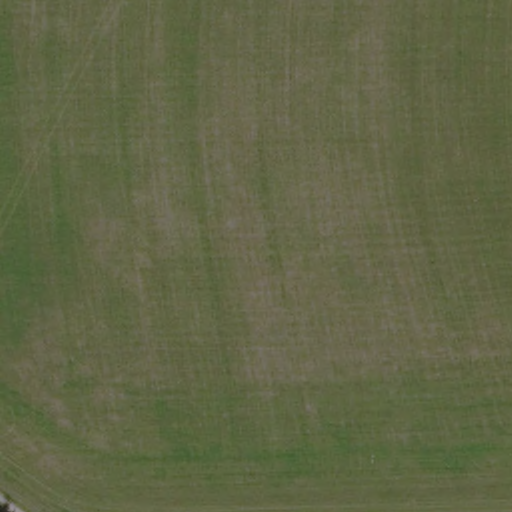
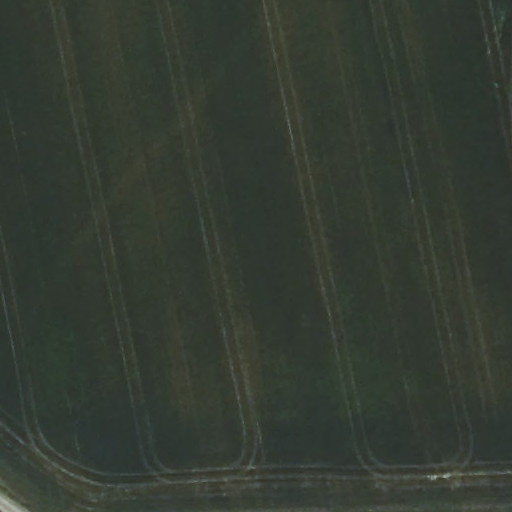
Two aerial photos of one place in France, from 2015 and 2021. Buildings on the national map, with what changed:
[]

